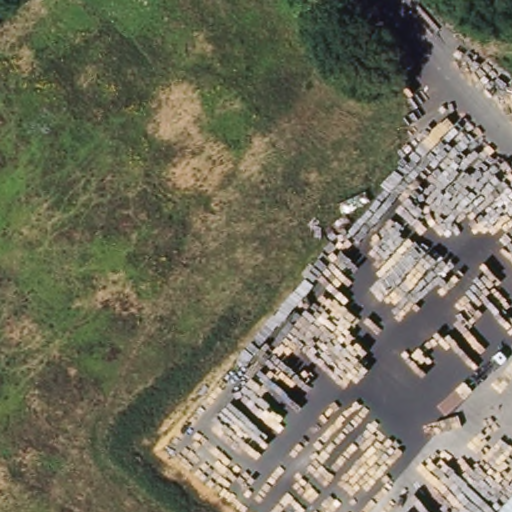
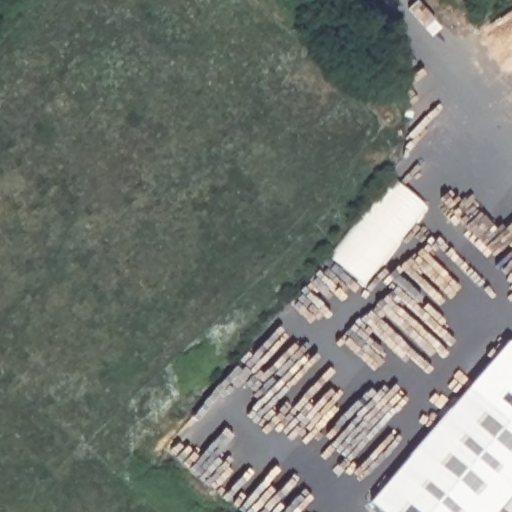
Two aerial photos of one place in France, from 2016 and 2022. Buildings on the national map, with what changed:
new [(384,512),(371,501),(470,387),(512,424),(512,496),(498,512),(384,512)]
unchanged [(512,512),(498,512),(512,496),(512,512)]

